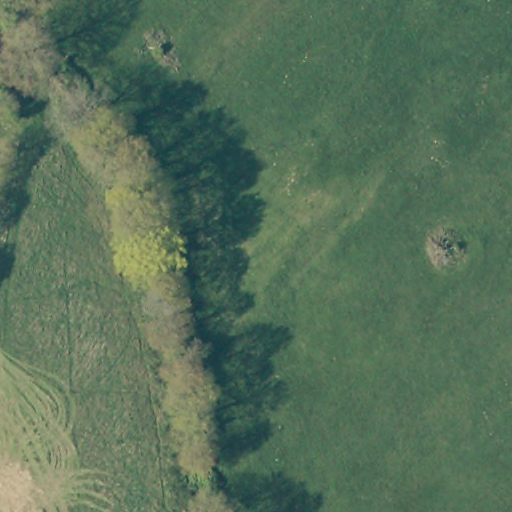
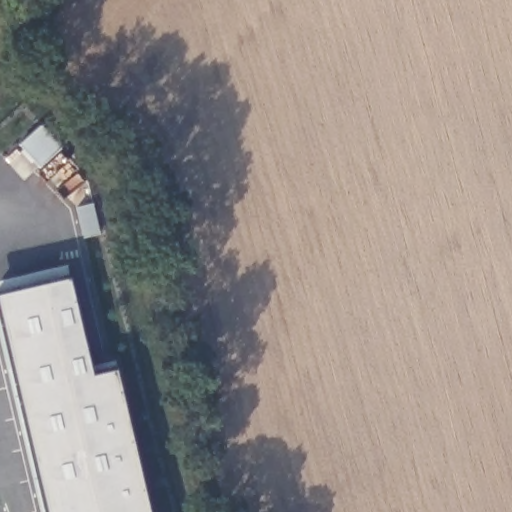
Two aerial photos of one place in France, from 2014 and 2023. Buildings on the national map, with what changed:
new [(61,261),(65,279),(88,374),(113,369),(146,512),(41,512),(0,331),(0,276),(61,261)]

